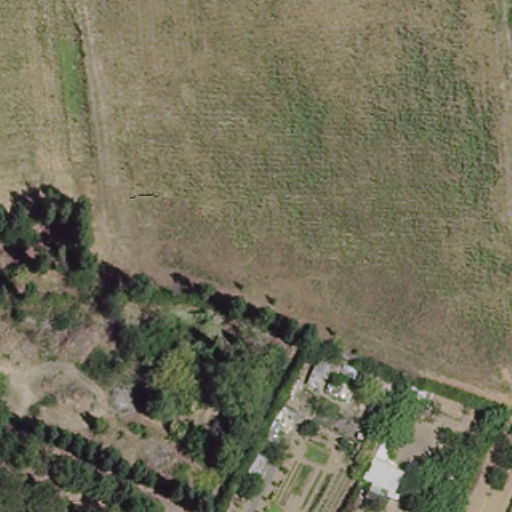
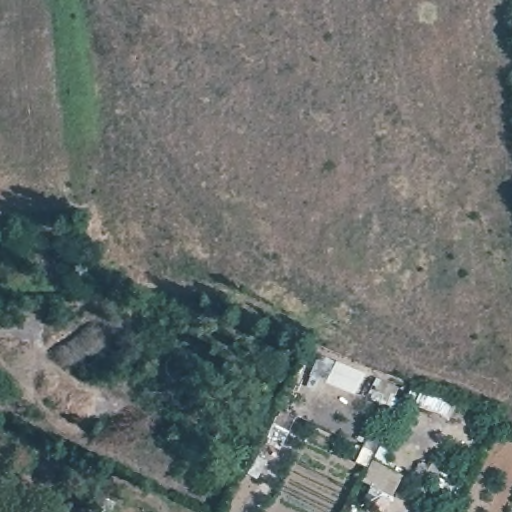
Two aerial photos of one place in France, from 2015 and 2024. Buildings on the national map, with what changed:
unchanged [(394,497),(360,483),(372,459),(405,475),(394,497)]

